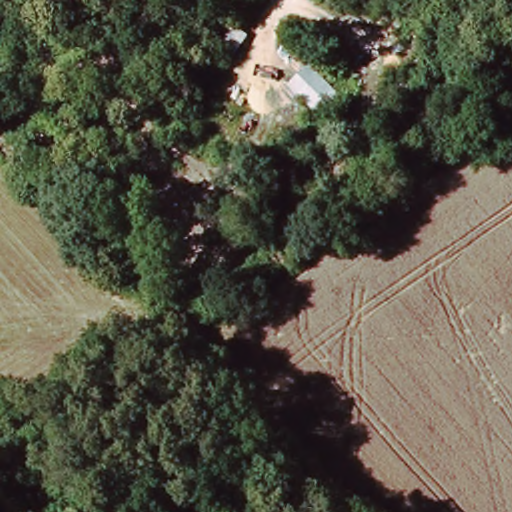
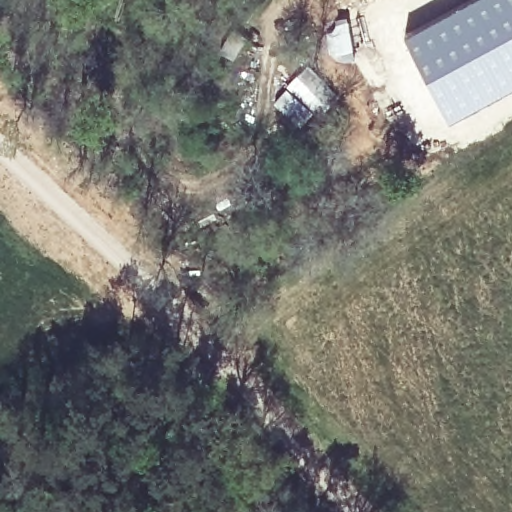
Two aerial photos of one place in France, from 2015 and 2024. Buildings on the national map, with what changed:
new [(512,0),(512,87),(448,120),(405,33),(466,0),(512,0)]
new [(347,16),(353,52),(328,56),(322,22),(347,16)]
unchanged [(311,65),(342,96),(320,117),(290,85),(311,65)]

